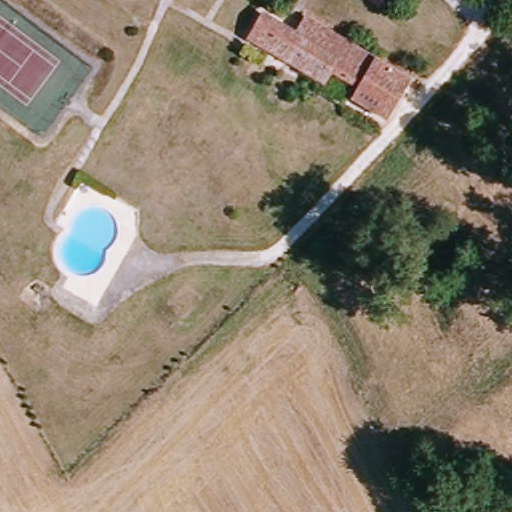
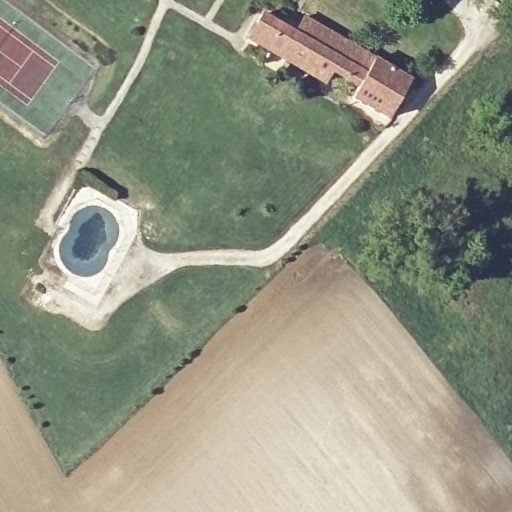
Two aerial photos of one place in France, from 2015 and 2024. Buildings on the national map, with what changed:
unchanged [(306,20),(414,79),(393,119),(355,99),(362,87),(334,72),(328,84),(251,42),(265,16),(298,34),(306,20)]

